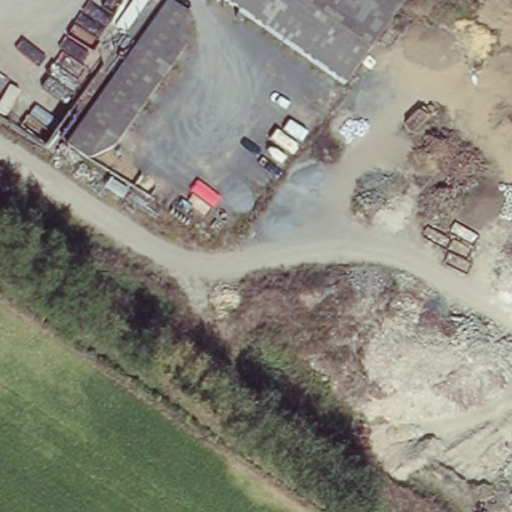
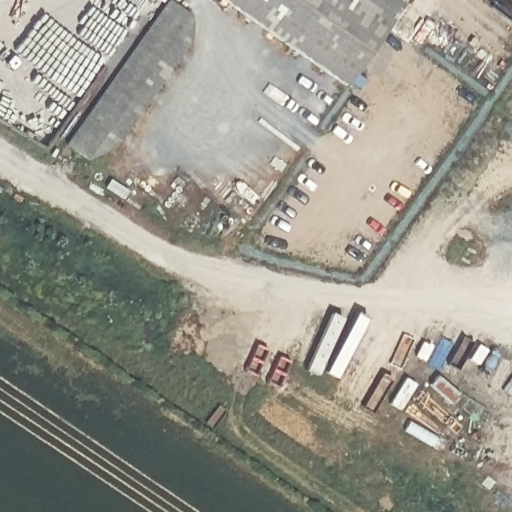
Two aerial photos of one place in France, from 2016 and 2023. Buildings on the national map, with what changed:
unchanged [(174,0),(176,0),(195,13),(95,158),(75,144),(174,0)]
unchanged [(222,7),(226,0),(403,0),(405,1),(346,92),(222,7)]

